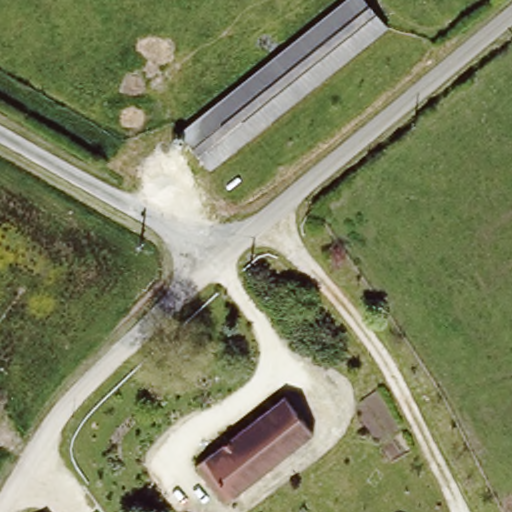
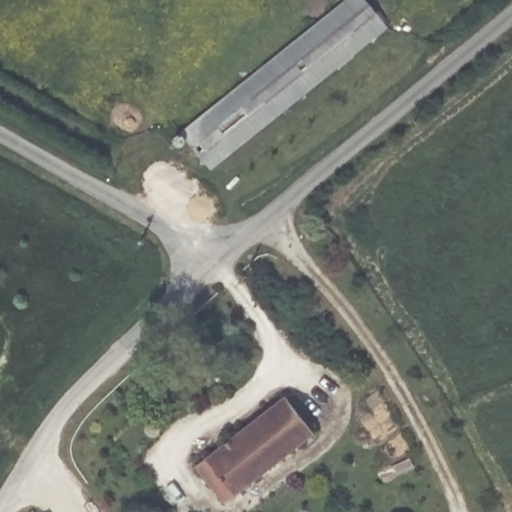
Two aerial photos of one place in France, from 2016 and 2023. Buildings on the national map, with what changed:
unchanged [(361,0),(381,24),(282,110),(212,171),(190,148),(178,157),(169,145),(181,135),(340,0),(361,0)]
unchanged [(285,393),(315,432),(216,506),(186,466),(285,393)]

